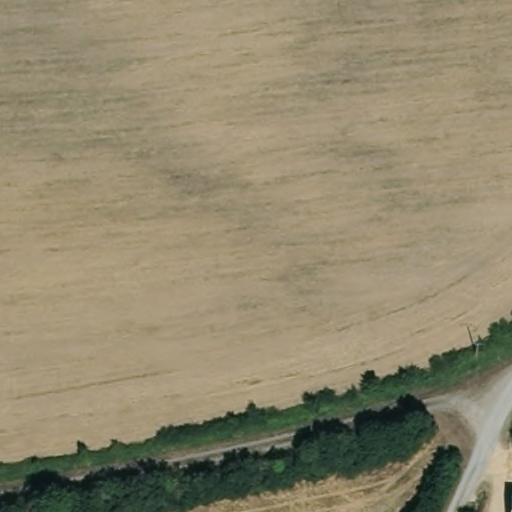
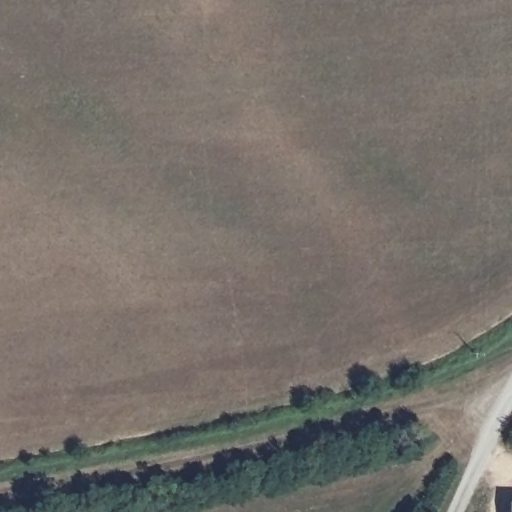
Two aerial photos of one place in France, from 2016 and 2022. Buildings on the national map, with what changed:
unchanged [(512,505),(512,512),(511,512),(511,505),(512,505)]

